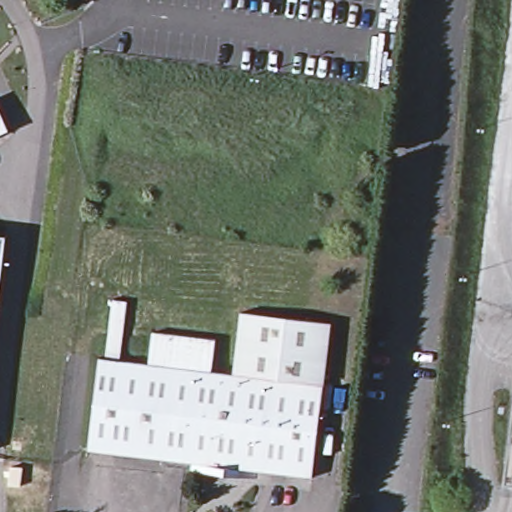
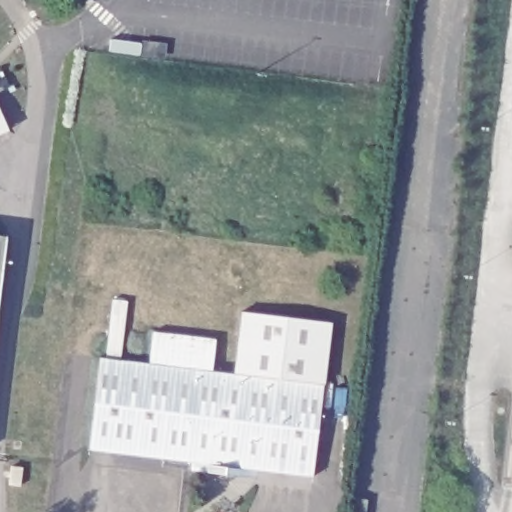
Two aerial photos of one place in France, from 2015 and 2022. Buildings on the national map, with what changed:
unchanged [(0,136),(0,127),(3,134),(0,136)]
unchanged [(0,287),(0,234),(6,235),(0,287)]
unchanged [(232,370),(239,312),(329,321),(324,380),(232,370)]
unchanged [(154,330),(216,336),(213,367),(151,360),(154,330)]
unchanged [(100,355),(151,360),(213,367),(232,370),(324,380),(314,471),(259,465),(259,472),(193,465),(194,457),(91,445),(100,355)]

